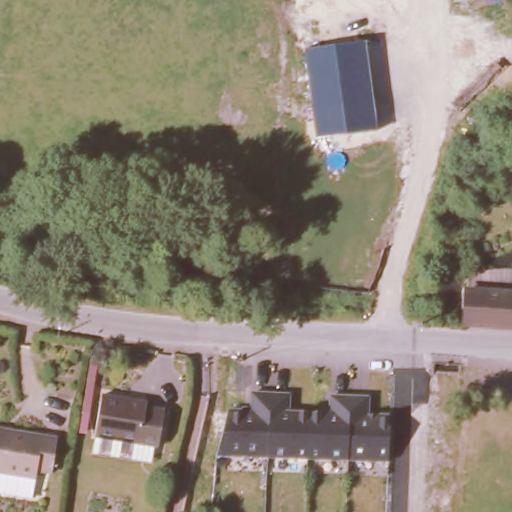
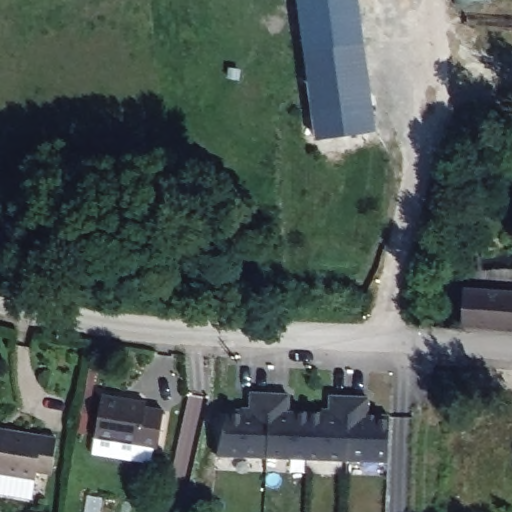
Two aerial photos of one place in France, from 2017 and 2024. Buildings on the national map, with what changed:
new [(359,0),(365,42),(305,49),(297,0),(359,0)]
unchanged [(376,131),(315,137),(305,49),(365,42),(376,131)]
unchanged [(458,324),(460,288),(512,292),(512,328),(462,325),(458,324)]
unchanged [(146,396),(145,401),(162,404),(156,446),(93,436),(100,389),(146,396)]
unchanged [(229,410),(252,411),(254,390),(290,392),(289,407),(329,412),(330,395),(370,398),(369,416),(390,417),(387,461),(218,457),(229,410)]
unchanged [(53,431),(48,466),(33,463),(32,472),(0,467),(0,422),(53,431)]

